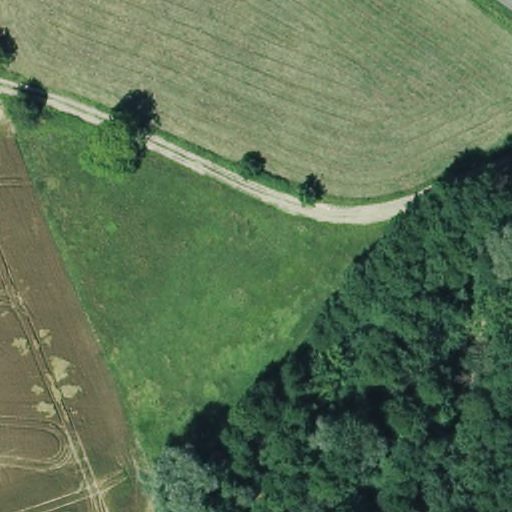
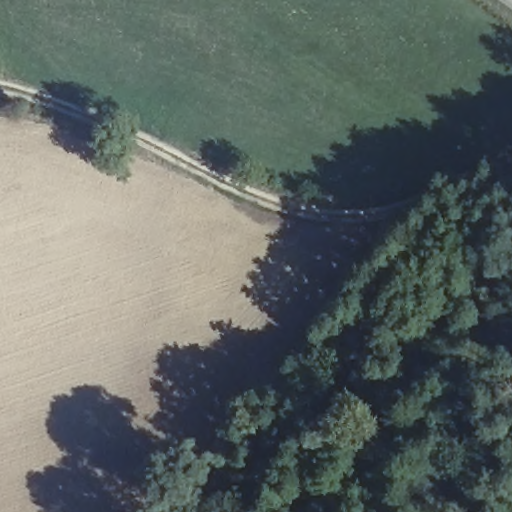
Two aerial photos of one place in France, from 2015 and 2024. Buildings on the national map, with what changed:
unchanged [(488,236),(502,242),(495,259),(479,256),(488,236)]

